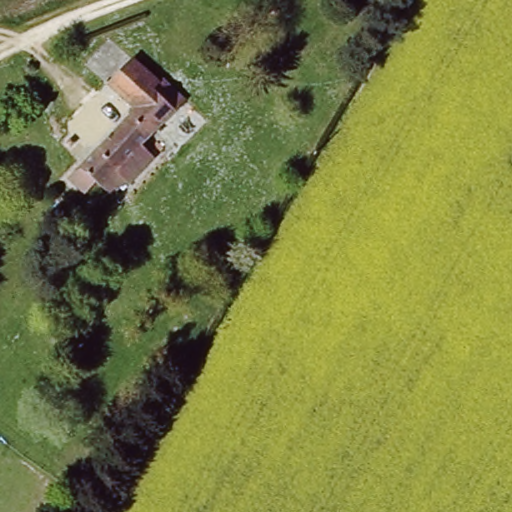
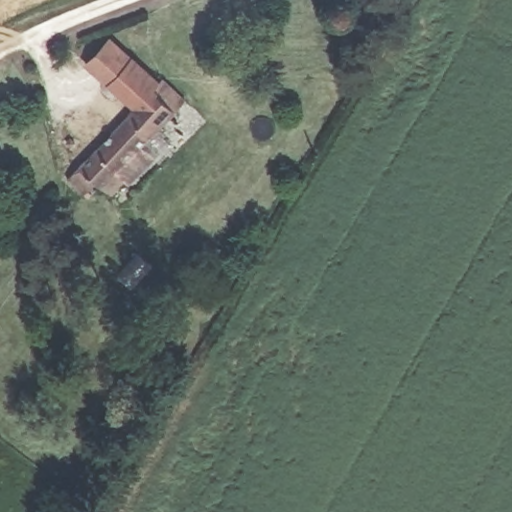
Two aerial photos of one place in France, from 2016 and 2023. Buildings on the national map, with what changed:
unchanged [(149,85),(155,79),(176,99),(134,143),(143,152),(104,192),(94,182),(82,196),(62,178),(129,107),(90,71),(110,49),(149,85)]

